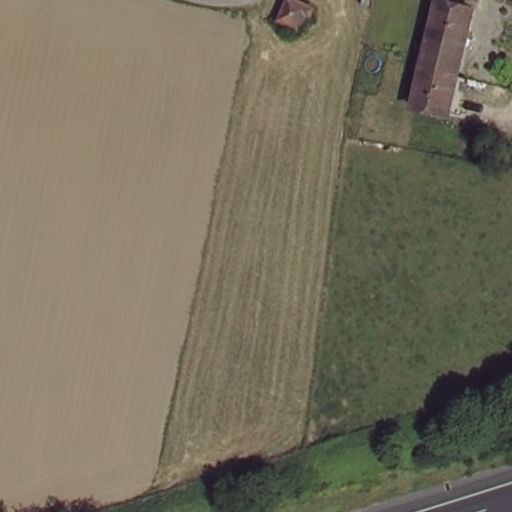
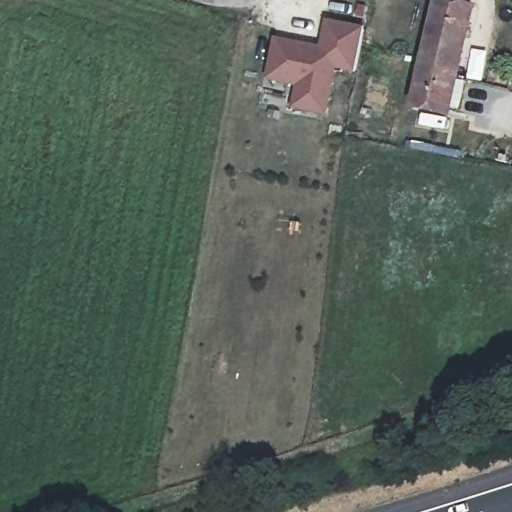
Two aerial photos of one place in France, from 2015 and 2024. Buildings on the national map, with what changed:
demolished [(307,20),(300,34),(275,23),(284,0),(305,0),(320,6),(314,22),(307,20)]
unchanged [(408,102),(435,0),(475,0),(482,2),(454,113),(408,102)]
new [(325,19),(364,28),(355,74),(335,70),(327,117),(290,110),(295,88),(264,82),(273,37),(320,47),(325,19)]

